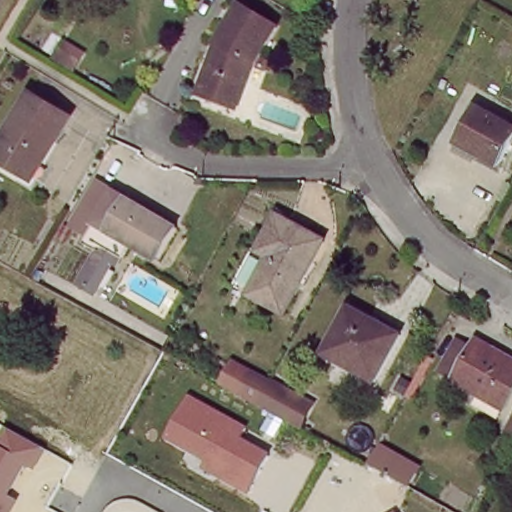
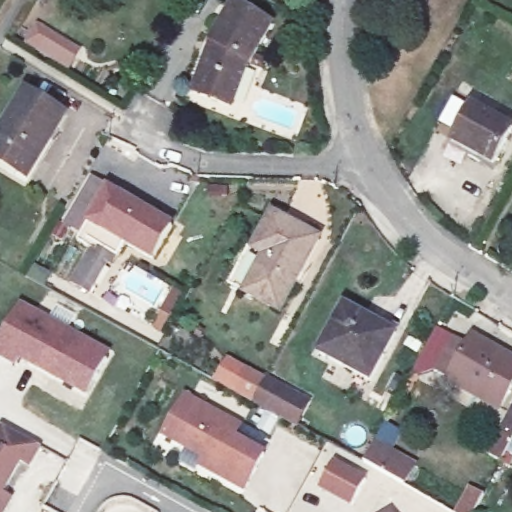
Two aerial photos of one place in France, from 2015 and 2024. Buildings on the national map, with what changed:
unchanged [(249,58),(245,57),(231,102),(193,89),(211,37),(232,0),(243,0),(273,17),(249,58)]
unchanged [(21,173),(0,161),(0,134),(28,87),(68,112),(51,139),(27,177),(21,173)]
unchanged [(512,137),(499,163),(457,141),(476,105),(512,124),(512,137)]
unchanged [(80,288),(102,249),(85,239),(93,224),(110,190),(176,227),(156,262),(129,245),(121,259),(116,256),(94,296),(80,288)]
unchanged [(326,235),(287,308),(240,285),(279,211),(326,235)]
unchanged [(367,309),(364,316),(395,332),(373,373),(320,346),(345,298),(367,309)]
new [(22,304),(109,352),(86,393),(20,357),(16,362),(0,354),(0,342),(22,304)]
unchanged [(457,380),(444,372),(451,358),(460,341),(475,348),(480,338),(512,355),(512,397),(507,406),(457,380)]
unchanged [(293,419),(255,398),(236,388),(219,379),(231,357),(248,367),(267,377),(305,397),(293,419)]
unchanged [(241,425),(236,435),(266,452),(243,492),(196,467),(200,460),(161,436),(187,395),(241,425)]
unchanged [(512,430),(503,425),(512,408),(512,430)]
unchanged [(31,472),(19,467),(6,497),(13,500),(7,512),(0,512),(0,430),(3,426),(42,448),(31,472)]
unchanged [(378,442),(419,465),(409,487),(366,462),(378,442)]
new [(366,508),(355,502),(352,508),(319,490),(335,460),(379,484),(366,508)]
unchanged [(394,512),(385,512),(392,508),(394,512)]

